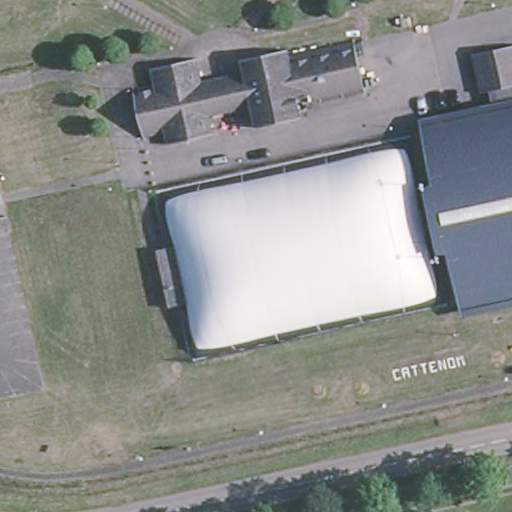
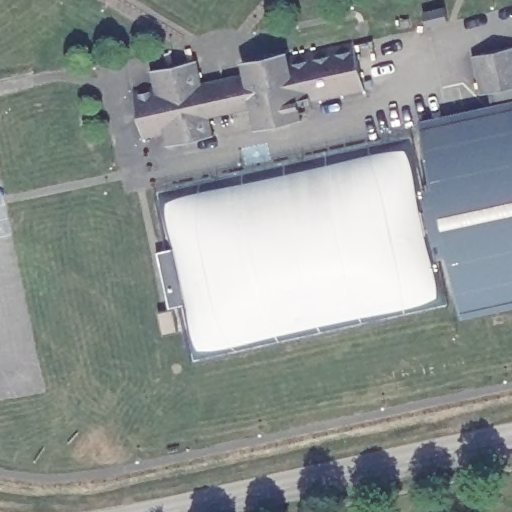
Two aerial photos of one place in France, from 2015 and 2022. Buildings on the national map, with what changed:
unchanged [(290,55),(354,41),(366,88),(311,102),(309,96),(300,100),(303,119),(259,128),(254,109),(212,120),(216,137),(171,148),(169,137),(145,141),(135,95),(156,90),(155,72),(199,64),(204,86),(246,76),(242,61),(269,55),(289,50),(290,55)]
unchanged [(512,57),(512,78),(474,88),(466,51),(508,43),(512,57)]
unchanged [(455,301),(417,137),(414,125),(512,101),(512,289),(455,301)]
unchanged [(455,301),(194,365),(157,192),(417,137),(455,301)]

